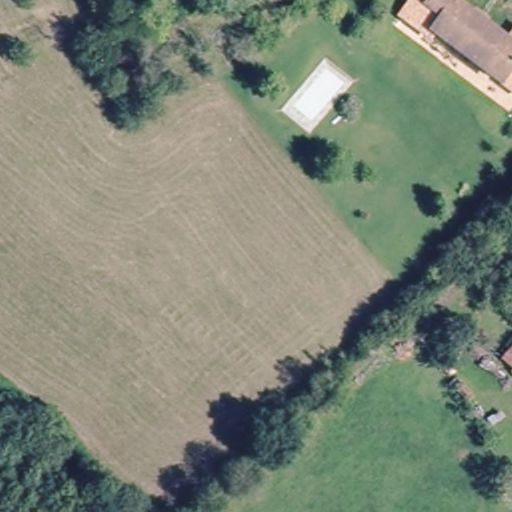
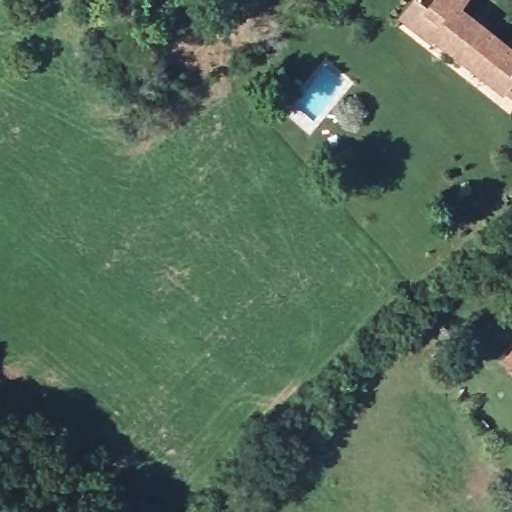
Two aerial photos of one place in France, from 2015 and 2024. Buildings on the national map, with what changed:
unchanged [(422,0),(461,0),(460,1),(510,44),(512,46),(512,70),(501,84),(436,30),(431,36),(408,16),(422,0)]
unchanged [(512,40),(512,46),(510,44),(512,40)]
unchanged [(512,70),(512,96),(499,87),(501,84),(512,70)]
unchanged [(512,353),(512,366),(506,361),(512,353)]

